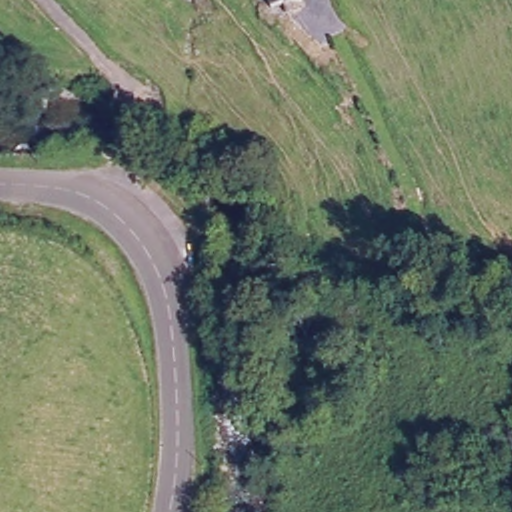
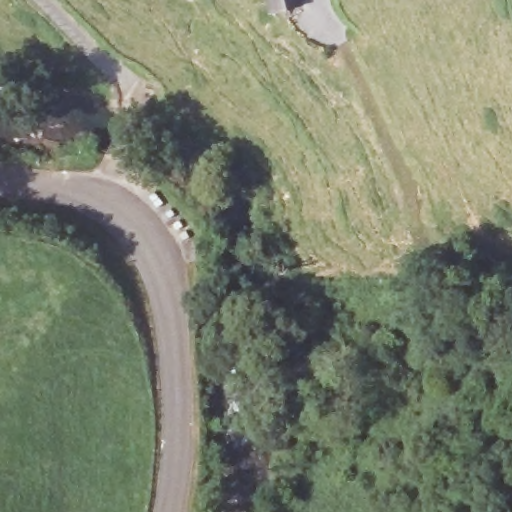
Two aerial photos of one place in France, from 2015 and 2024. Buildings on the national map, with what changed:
unchanged [(268,0),(300,0),(302,4),(274,14),(268,0)]

